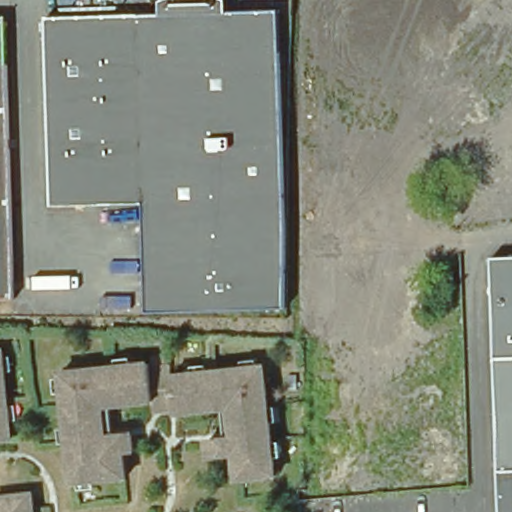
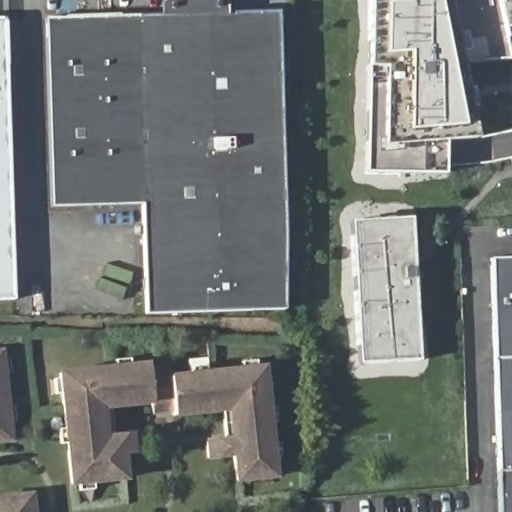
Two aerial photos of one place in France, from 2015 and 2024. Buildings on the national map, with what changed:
demolished [(300,16),(300,0),(331,0),(334,46),(299,48),(299,40),(300,16)]
new [(478,137),(445,139),(447,172),(369,171),(369,66),(370,0),(512,0),(512,58),(464,61),(478,137)]
demolished [(453,6),(452,0),(485,0),(485,4),(453,6)]
unchanged [(276,4),(287,303),(148,307),(144,197),(50,200),(43,11),(276,4)]
demolished [(503,48),(458,49),(456,33),(499,31),(501,31),(503,48)]
demolished [(502,67),(512,65),(512,99),(507,99),(502,67)]
unchanged [(7,313),(0,313),(0,131),(7,313)]
demolished [(460,147),(512,140),(512,166),(464,173),(460,147)]
demolished [(417,150),(443,149),(445,174),(420,177),(417,150)]
demolished [(458,185),(472,184),(474,228),(459,229),(458,185)]
new [(420,360),(360,363),(352,221),(413,216),(420,360)]
unchanged [(512,255),(512,512),(503,512),(490,256),(512,255)]
demolished [(327,355),(346,346),(341,335),(359,326),(367,343),(410,321),(428,356),(391,374),(385,364),(377,368),(380,374),(344,389),(327,355)]
unchanged [(13,433),(0,435),(0,343),(4,343),(13,433)]
unchanged [(148,356),(149,363),(170,361),(170,369),(266,359),(278,473),(235,478),(231,451),(205,454),(203,435),(228,431),(226,407),(174,413),(174,407),(155,409),(153,400),(106,405),(108,430),(134,427),(136,448),(125,450),(127,475),(69,481),(57,366),(148,356)]
unchanged [(34,486),(36,512),(0,512),(0,490),(34,486)]

